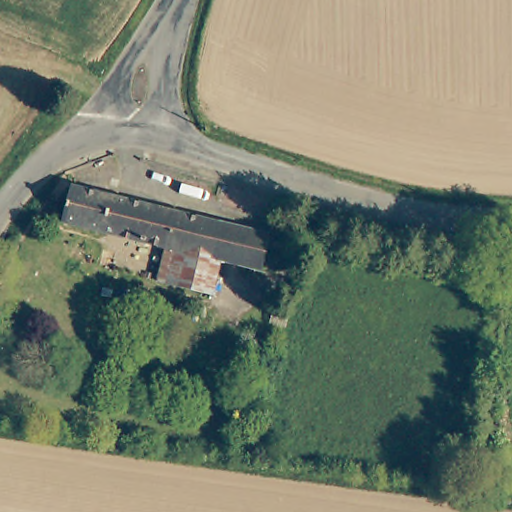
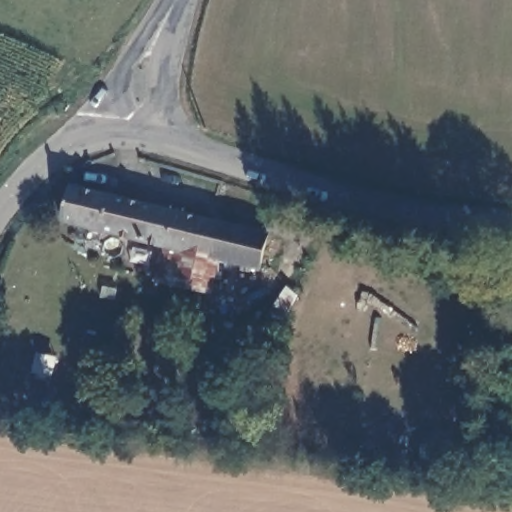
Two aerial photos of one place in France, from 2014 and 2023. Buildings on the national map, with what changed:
unchanged [(203,290),(156,280),(165,247),(60,223),(61,218),(66,189),(269,234),(263,269),(222,261),(216,293),(203,290)]

